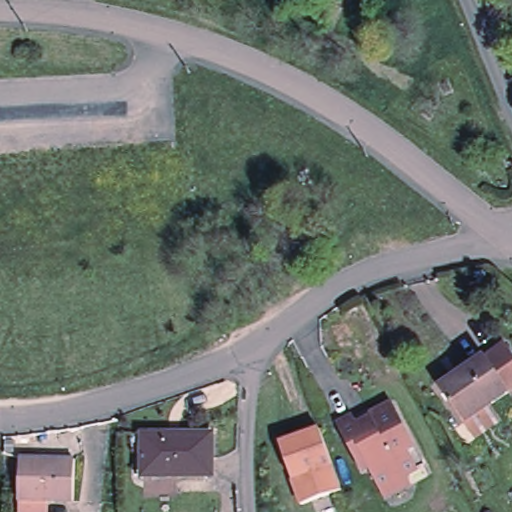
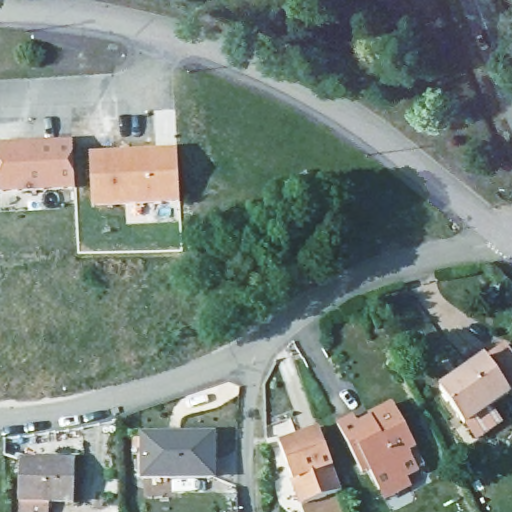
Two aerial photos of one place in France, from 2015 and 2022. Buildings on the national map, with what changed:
new [(0,193),(0,145),(73,141),(75,190),(0,193)]
new [(93,207),(91,153),(177,149),(180,203),(93,207)]
unchanged [(504,340),(512,352),(512,387),(509,390),(484,354),(500,343),(504,340)]
unchanged [(474,437),(463,422),(439,387),(484,354),(509,390),(489,404),(500,419),(474,437)]
unchanged [(392,402),(425,462),(409,471),(380,409),(392,402)]
unchanged [(389,504),(380,487),(367,466),(361,470),(335,424),(352,414),(359,426),(371,419),(369,415),(380,409),(409,471),(405,473),(414,489),(389,504)]
unchanged [(320,431),(342,492),(302,507),(280,446),(320,431)]
unchanged [(212,434),(212,477),(141,478),(141,434),(212,434)]
unchanged [(20,502),(20,461),(65,462),(76,463),(75,504),(67,504),(47,503),(47,512),(20,512),(20,502)]

